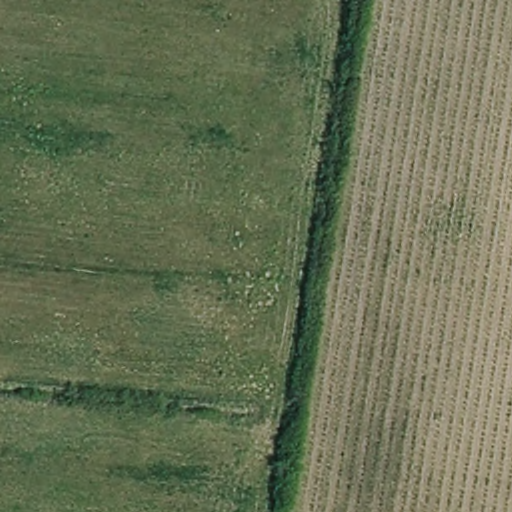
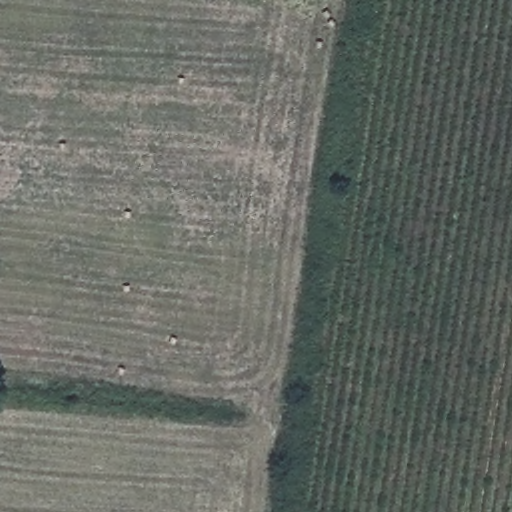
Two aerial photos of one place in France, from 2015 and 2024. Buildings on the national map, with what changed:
[]

